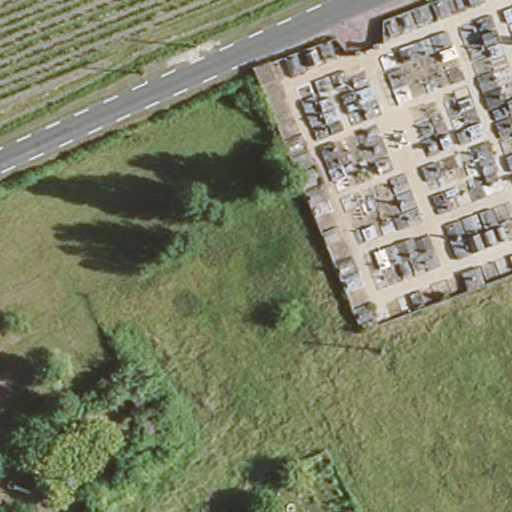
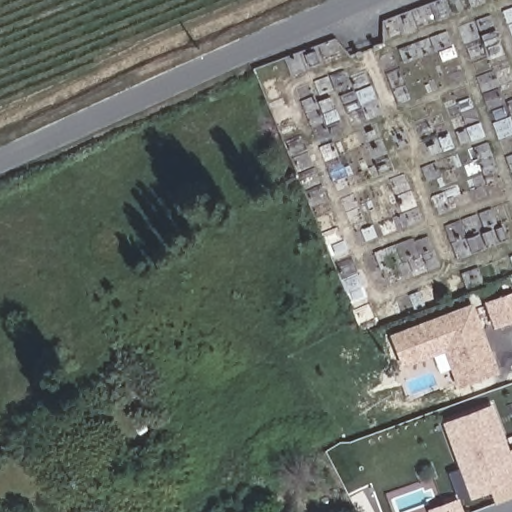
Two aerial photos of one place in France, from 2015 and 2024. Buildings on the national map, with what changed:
new [(443,352),(401,368),(388,334),(473,303),(499,373),(457,388),(443,352)]
new [(468,480),(446,420),(493,403),(510,449),(512,449),(512,481),(492,488),(473,495),(468,480)]

